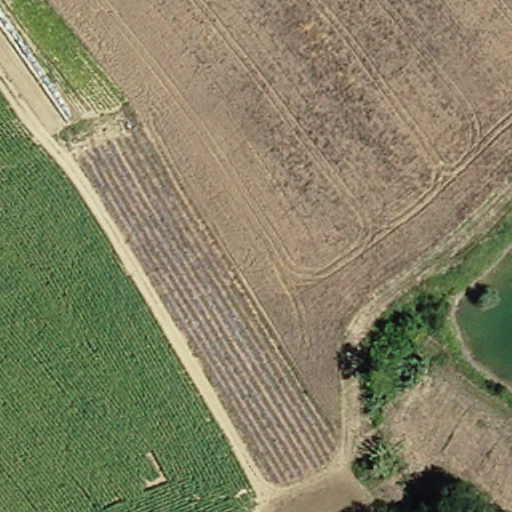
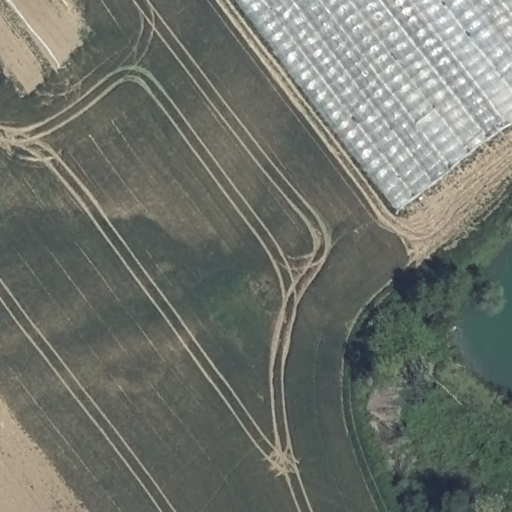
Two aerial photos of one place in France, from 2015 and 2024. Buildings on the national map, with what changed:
new [(235,0),(512,0),(512,124),(396,212),(235,0)]

